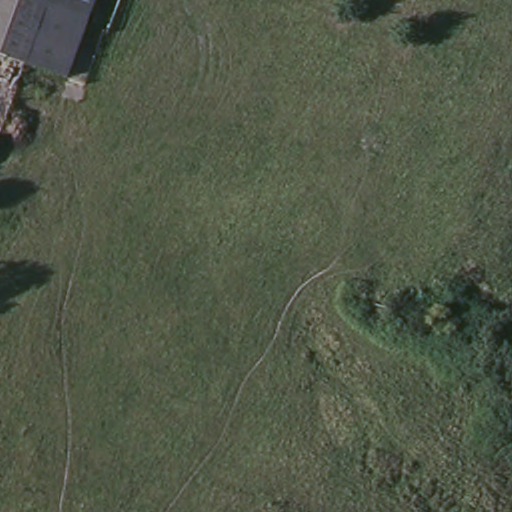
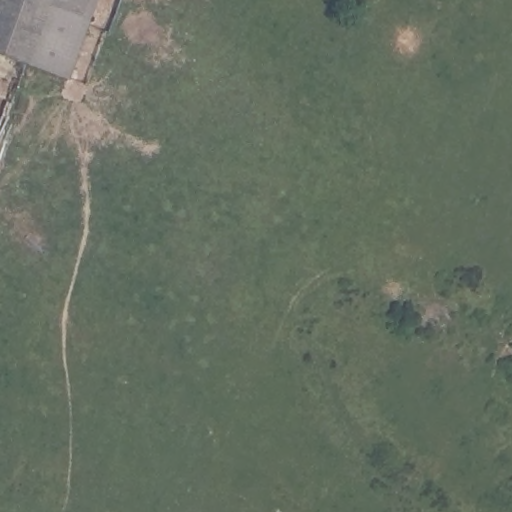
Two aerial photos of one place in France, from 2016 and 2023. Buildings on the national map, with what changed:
unchanged [(49,0),(29,55),(0,47),(0,0),(49,0)]
unchanged [(75,69),(29,55),(49,0),(70,0),(96,9),(75,69)]
unchanged [(96,9),(70,0),(102,0),(99,9),(96,9)]

